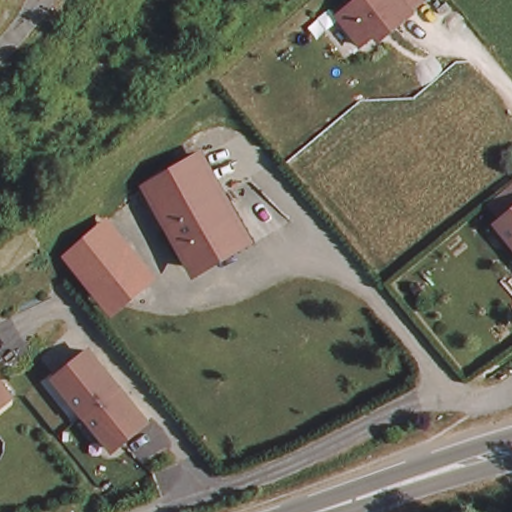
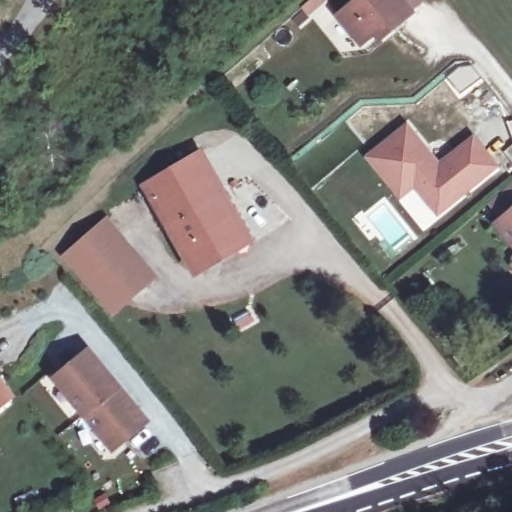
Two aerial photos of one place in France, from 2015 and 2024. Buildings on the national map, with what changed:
unchanged [(377,30),(363,42),(340,13),(356,0),(407,0),(415,10),(395,26),(382,36),(377,30)]
new [(440,160),(473,133),(502,167),(437,218),(415,189),(400,201),(365,156),(408,122),(440,160)]
unchanged [(147,181),(200,152),(222,192),(245,236),(193,265),(169,221),(147,181)]
unchanged [(159,277),(112,314),(63,256),(108,215),(159,277)]
unchanged [(512,215),(512,242),(499,225),(512,215)]
unchanged [(128,397),(147,420),(113,448),(55,378),(89,350),(107,373),(128,397)]
unchanged [(7,391),(0,397),(0,384),(7,391)]

